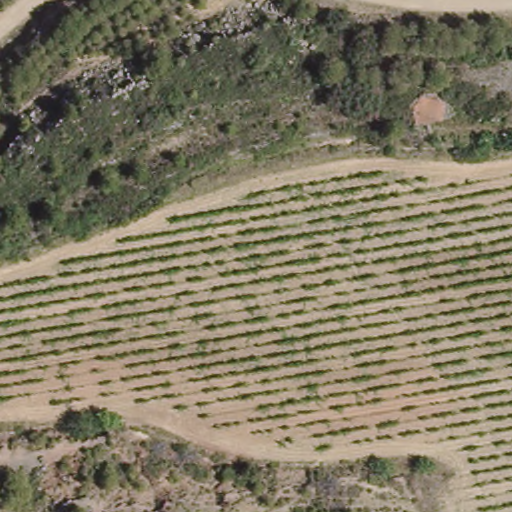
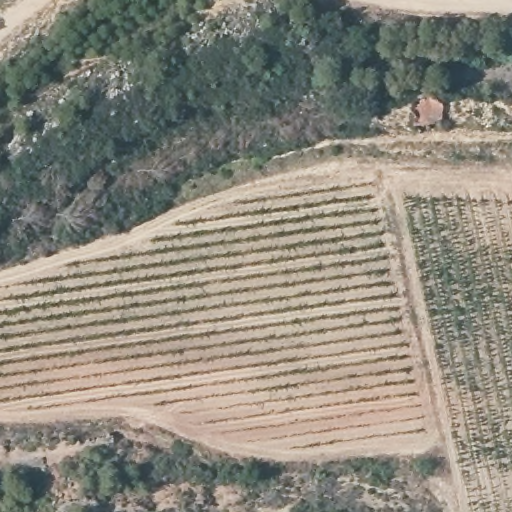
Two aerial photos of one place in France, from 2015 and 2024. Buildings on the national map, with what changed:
unchanged [(409,129),(410,105),(437,102),(439,127),(409,129)]

